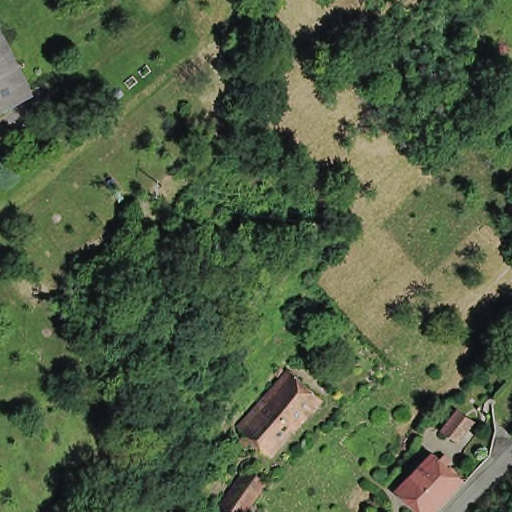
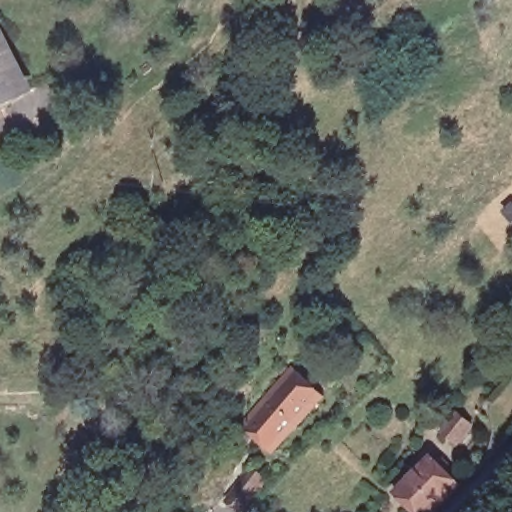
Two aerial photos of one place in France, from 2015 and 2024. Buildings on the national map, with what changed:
unchanged [(0,104),(0,61),(18,94),(0,104)]
unchanged [(505,212),(512,204),(512,219),(505,212)]
unchanged [(275,452),(244,425),(294,371),(325,400),(275,452)]
unchanged [(435,427),(450,407),(473,426),(457,446),(435,427)]
unchanged [(434,465),(438,461),(444,467),(440,471),(455,486),(429,512),(411,512),(393,494),(428,458),(434,465)]
unchanged [(237,477),(245,469),(262,485),(255,492),(237,512),(229,512),(216,500),(237,477)]

